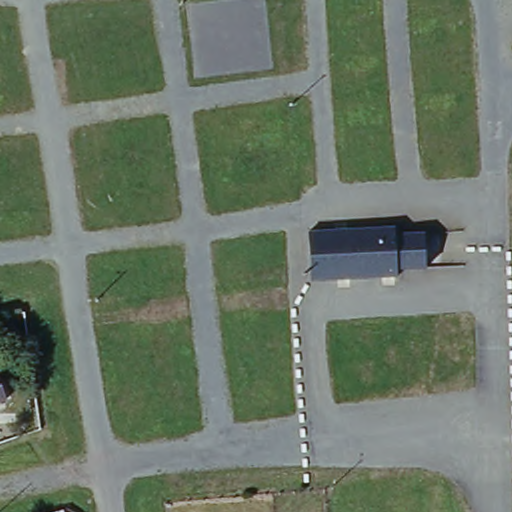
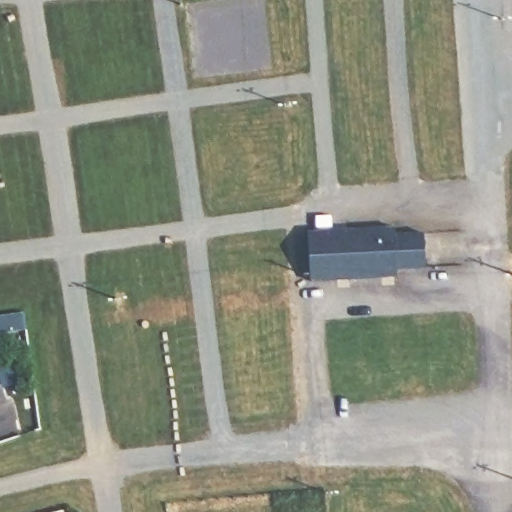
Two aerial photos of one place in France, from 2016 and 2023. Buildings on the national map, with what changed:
unchanged [(308,270),(306,238),(384,235),(384,240),(415,238),(417,262),(417,269),(308,270)]
unchanged [(0,405),(0,379),(6,404),(0,405)]
unchanged [(70,512),(51,512),(50,509),(69,506),(70,512)]

